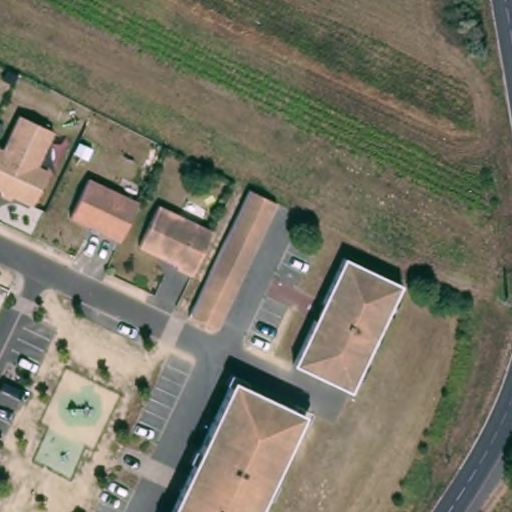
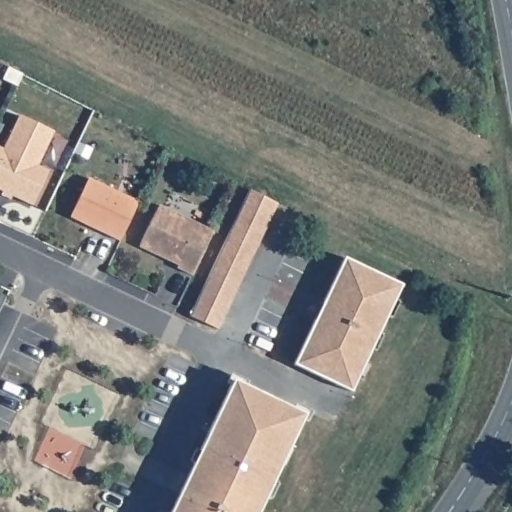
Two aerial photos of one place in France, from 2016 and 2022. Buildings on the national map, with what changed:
unchanged [(0,195),(2,191),(0,190),(0,148),(2,149),(19,115),(53,131),(36,165),(47,171),(31,205),(11,195),(9,199),(0,195)]
unchanged [(70,217),(88,178),(138,202),(119,240),(70,217)]
unchanged [(276,202),(217,328),(189,315),(249,189),(276,202)]
unchanged [(159,204),(213,230),(192,273),(176,267),(178,263),(139,246),(159,204)]
unchanged [(344,257),(401,284),(351,391),(293,364),(344,257)]
unchanged [(305,413),(258,512),(170,512),(232,379),(305,413)]

